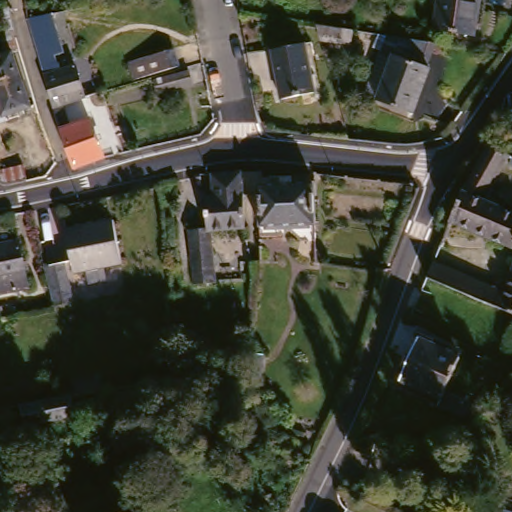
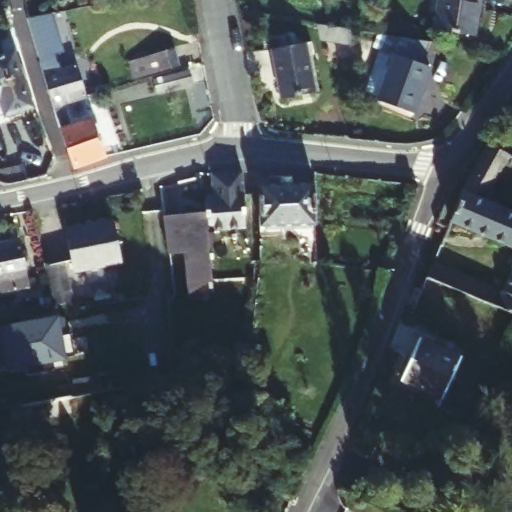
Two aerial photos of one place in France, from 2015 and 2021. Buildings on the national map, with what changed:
unchanged [(445,0),(487,0),(481,37),(440,32),(445,0)]
unchanged [(41,17),(49,15),(54,33),(46,36),(41,17)]
unchanged [(386,50),(391,34),(440,41),(431,66),(434,66),(419,108),(382,97),(385,92),(372,89),(386,50)]
unchanged [(63,37),(69,61),(53,65),(47,42),(63,37)]
unchanged [(276,46),(312,39),(322,89),(286,96),(276,46)]
unchanged [(127,60),(171,46),(176,64),(134,77),(127,60)]
unchanged [(31,107),(5,115),(4,112),(0,113),(0,57),(14,52),(31,107)]
unchanged [(55,73),(88,64),(95,95),(72,101),(64,104),(55,73)]
unchanged [(156,80),(191,70),(195,85),(160,96),(156,80)]
unchanged [(86,167),(64,104),(72,101),(79,122),(101,116),(112,159),(86,167)]
unchanged [(512,154),(512,158),(487,199),(512,210),(512,247),(454,222),(468,189),(493,146),(512,154)]
unchanged [(194,282),(189,229),(206,227),(203,197),(212,197),(210,174),(240,170),(242,225),(209,230),(213,280),(194,282)]
unchanged [(267,179),(290,178),(289,170),(301,170),(301,178),(322,178),(322,219),(267,220),(267,179)]
unchanged [(122,218),(130,258),(115,262),(117,276),(96,281),(93,267),(83,268),(75,227),(122,218)]
unchanged [(22,236),(33,287),(0,294),(0,237),(1,240),(22,236)]
unchanged [(431,271),(436,258),(507,288),(512,275),(512,306),(498,301),(441,277),(431,272),(431,271)]
unchanged [(44,267),(61,265),(69,306),(52,309),(44,267)]
new [(71,333),(74,356),(65,355),(66,360),(7,371),(4,354),(0,355),(0,323),(55,313),(57,317),(65,316),(67,334),(71,333)]
unchanged [(448,403),(452,396),(410,376),(427,335),(471,353),(457,387),(481,399),(473,415),(448,403)]
unchanged [(264,352),(262,377),(247,377),(250,351),(264,352)]
unchanged [(188,363),(190,375),(176,377),(174,365),(188,363)]
unchanged [(77,406),(76,398),(74,382),(99,378),(101,393),(86,396),(87,403),(77,406)]
unchanged [(66,400),(71,399),(74,417),(26,427),(21,408),(66,400)]

